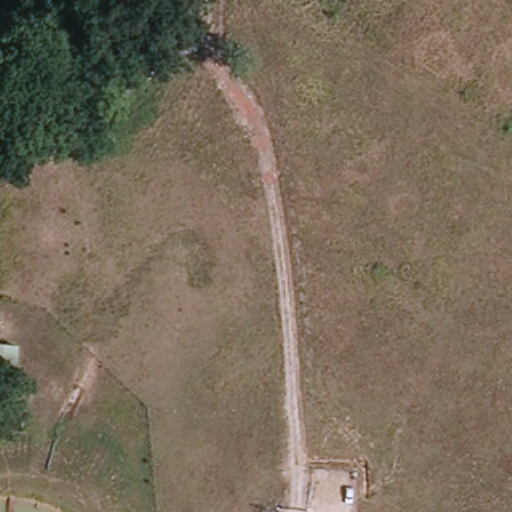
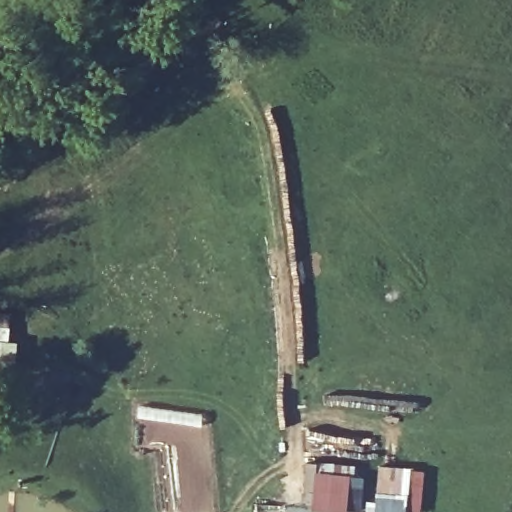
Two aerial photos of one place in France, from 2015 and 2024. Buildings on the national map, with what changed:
new [(10,312),(11,340),(17,339),(18,358),(0,359),(0,312),(10,312)]
new [(421,512),(373,512),(378,462),(411,466),(425,468),(421,512)]
new [(315,468),(364,474),(363,499),(367,500),(366,511),(309,510),(315,468)]

